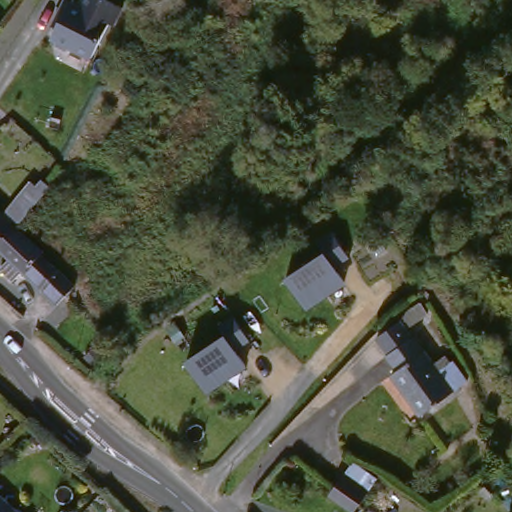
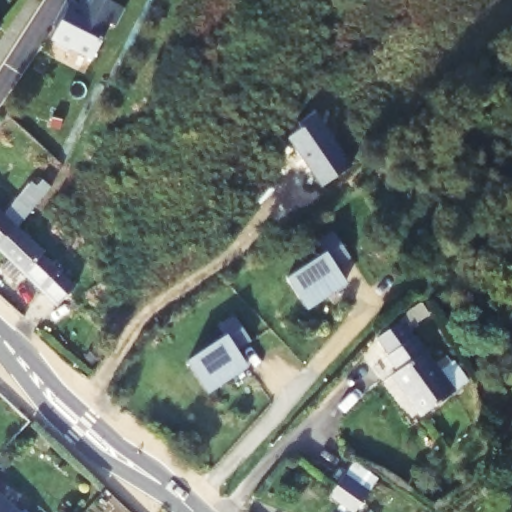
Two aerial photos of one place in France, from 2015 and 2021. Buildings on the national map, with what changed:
unchanged [(58,11),(65,0),(74,0),(79,3),(80,0),(117,0),(124,4),(116,21),(111,19),(94,54),(74,45),(69,46),(57,41),(55,35),(53,34),(63,14),(58,11)]
unchanged [(0,33),(0,25),(4,30),(0,33)]
new [(303,129),(299,124),(316,114),(349,170),(319,187),(289,136),(303,129)]
unchanged [(7,210),(28,191),(34,194),(39,184),(49,190),(38,214),(26,231),(19,239),(0,252),(0,217),(7,210)]
unchanged [(19,278),(9,288),(0,279),(0,270),(4,265),(0,260),(0,252),(19,239),(74,291),(72,294),(56,311),(19,278)]
unchanged [(309,307),(289,276),(328,252),(341,244),(350,257),(336,266),(346,283),(309,307)]
unchanged [(209,392),(188,360),(227,335),(242,326),(252,340),(237,350),(248,368),(209,392)]
unchanged [(399,377),(386,349),(410,334),(439,382),(456,374),(466,394),(416,422),(393,381),(399,377)]
unchanged [(351,512),(338,512),(329,506),(337,492),(343,484),(362,495),(354,508),(351,512)]
unchanged [(6,512),(0,512),(0,506),(6,512)]

